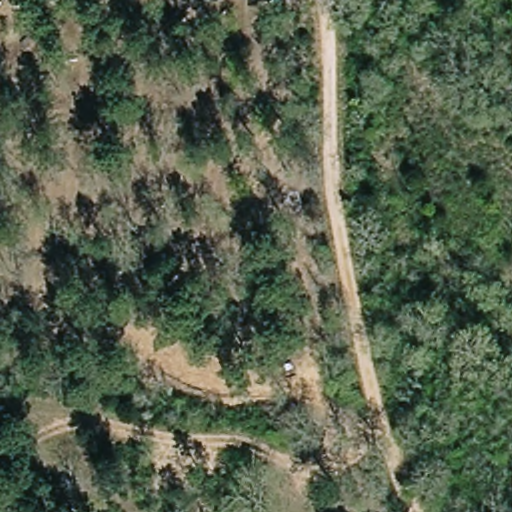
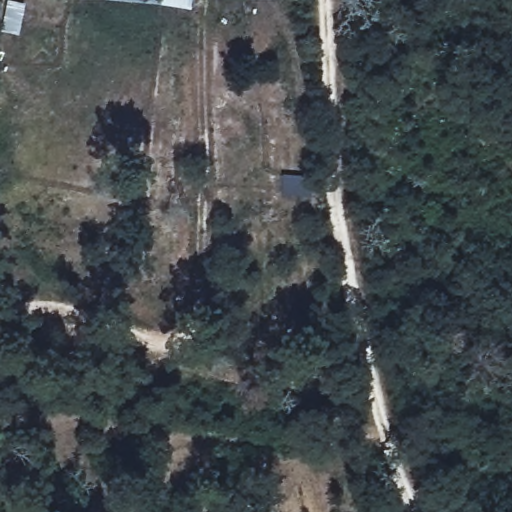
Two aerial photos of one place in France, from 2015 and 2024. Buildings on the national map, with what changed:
new [(189,0),(190,9),(92,0),(189,0)]

